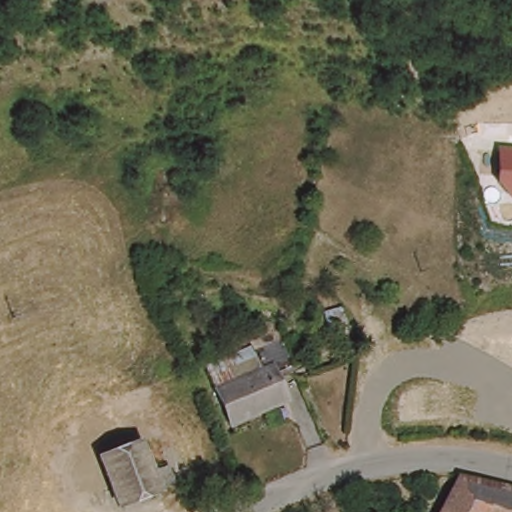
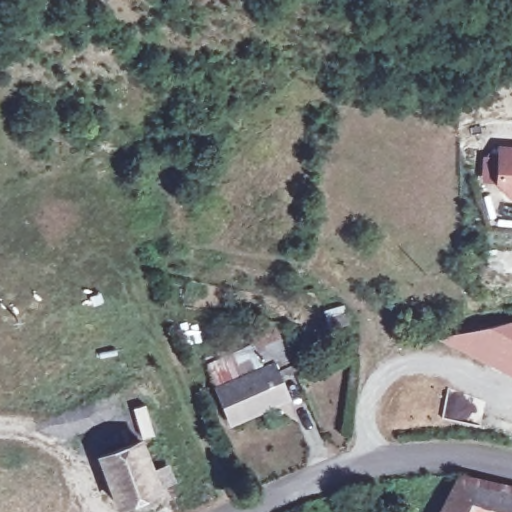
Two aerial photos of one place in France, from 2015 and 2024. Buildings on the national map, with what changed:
unchanged [(502,187),(496,187),(497,142),(512,144),(512,198),(503,197),(502,187)]
new [(512,322),(512,376),(437,339),(512,322)]
unchanged [(258,354),(254,345),(272,339),(284,334),(291,352),(299,378),(284,384),(274,358),(265,361),(248,367),(221,377),(214,379),(212,373),(258,354)]
unchanged [(221,377),(248,367),(265,361),(274,358),(284,384),(287,393),(287,394),(293,410),(233,431),(214,379),(221,377)]
unchanged [(121,504),(118,496),(114,485),(103,456),(120,449),(141,441),(156,475),(161,488),(121,504)]
unchanged [(467,471),(469,467),(512,482),(512,512),(443,512),(467,471)]

